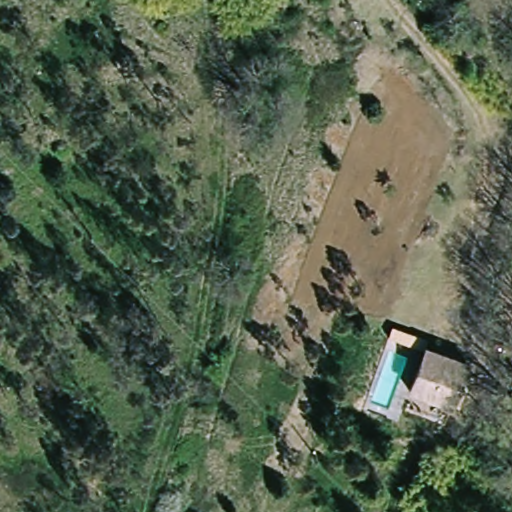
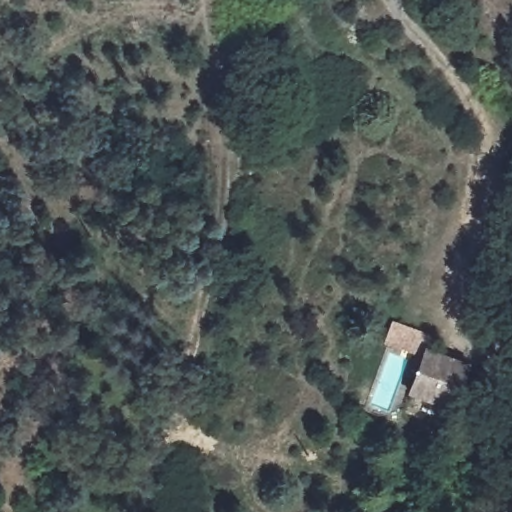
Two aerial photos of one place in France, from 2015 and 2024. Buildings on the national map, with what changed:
unchanged [(429,352),(470,362),(460,406),(418,396),(429,352)]

